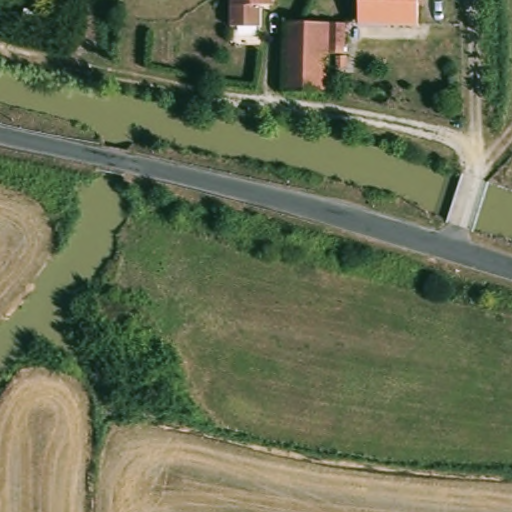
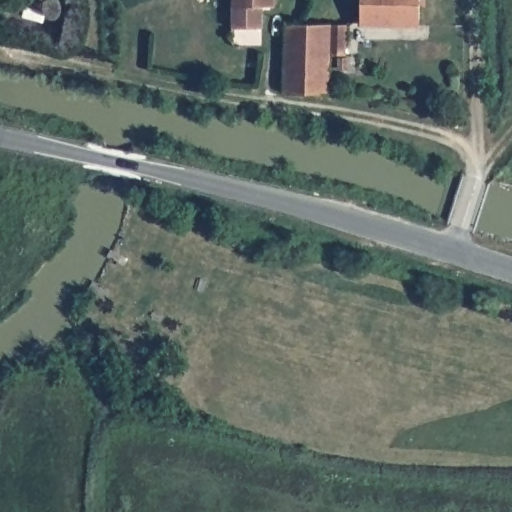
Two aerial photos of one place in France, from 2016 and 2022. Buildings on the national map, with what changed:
unchanged [(276,5),(264,5),(264,31),(235,31),(234,0),(276,0),(276,5)]
unchanged [(364,0),(423,0),(423,28),(405,28),(392,28),(392,22),(364,22),(364,0)]
unchanged [(290,30),(333,29),(351,28),(351,58),(335,59),(336,98),(291,99),(290,30)]

